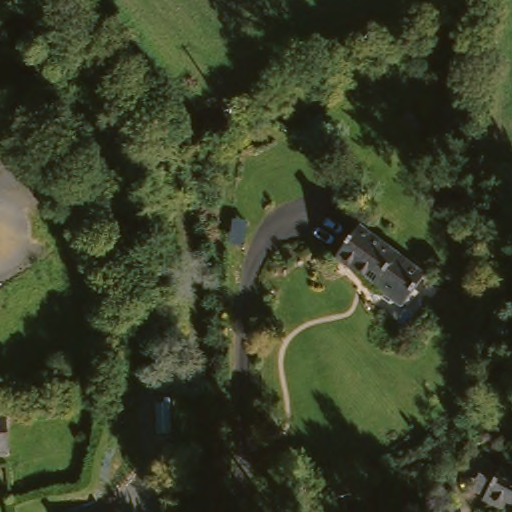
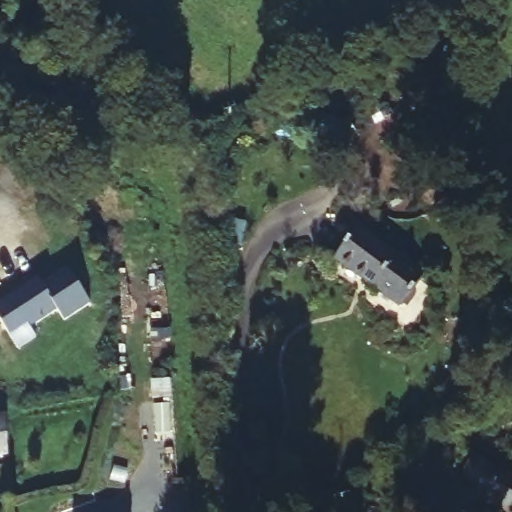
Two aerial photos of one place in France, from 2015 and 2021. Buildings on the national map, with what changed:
unchanged [(404,306),(335,255),(359,226),(428,276),(404,306)]
new [(37,275),(41,282),(67,265),(90,302),(64,320),(57,308),(29,326),(35,335),(18,346),(0,318),(0,299),(37,275)]
unchanged [(0,446),(0,408),(1,407),(7,445),(0,446)]
unchanged [(484,465),(512,480),(512,512),(503,512),(468,490),(484,465)]

